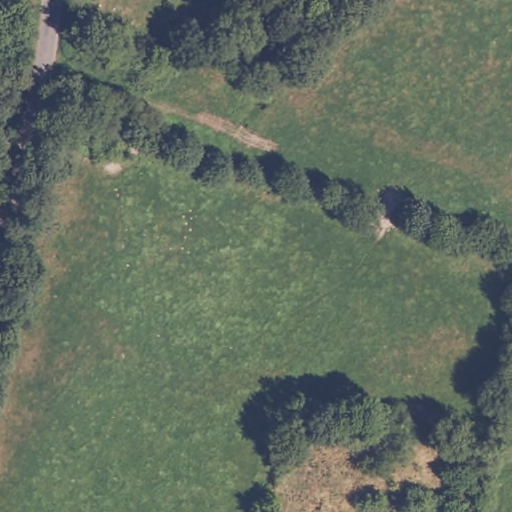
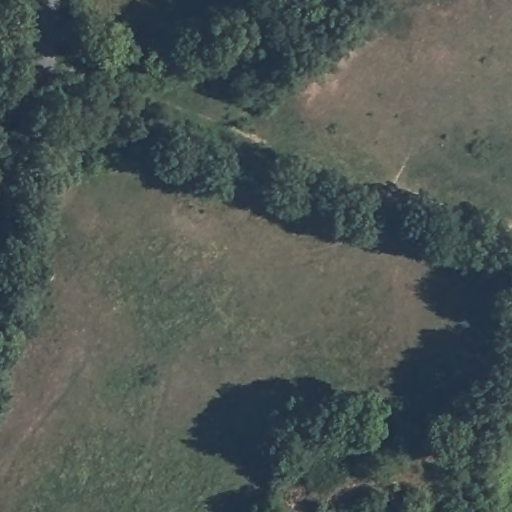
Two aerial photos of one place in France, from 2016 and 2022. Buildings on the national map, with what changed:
unchanged [(321,132),(315,128),(320,121),(326,126),(321,132)]

